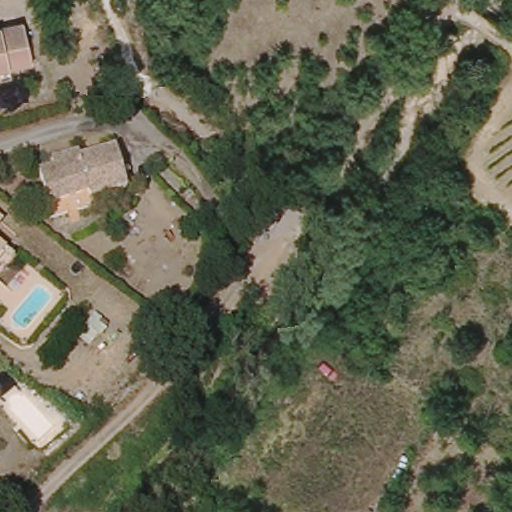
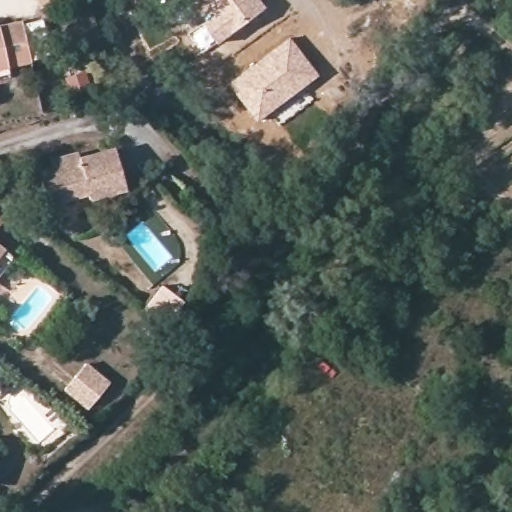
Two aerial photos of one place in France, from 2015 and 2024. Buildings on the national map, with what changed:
unchanged [(31,48),(0,58),(0,23),(23,17),(31,48)]
new [(290,37),(318,74),(256,121),(229,83),(290,37)]
unchanged [(2,78),(0,79),(0,70),(1,70),(2,78)]
unchanged [(46,167),(59,162),(58,158),(88,150),(89,154),(124,145),(134,181),(96,192),(95,188),(54,199),(46,167)]
unchanged [(0,217),(5,220),(0,227),(0,217)]
unchanged [(0,261),(0,242),(10,247),(0,261)]
new [(109,378),(91,405),(66,387),(85,361),(109,378)]

